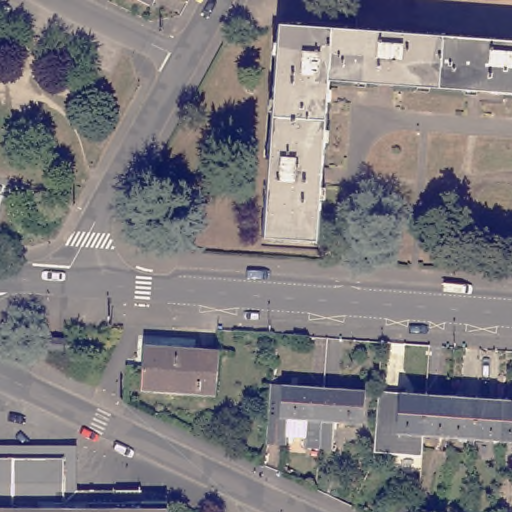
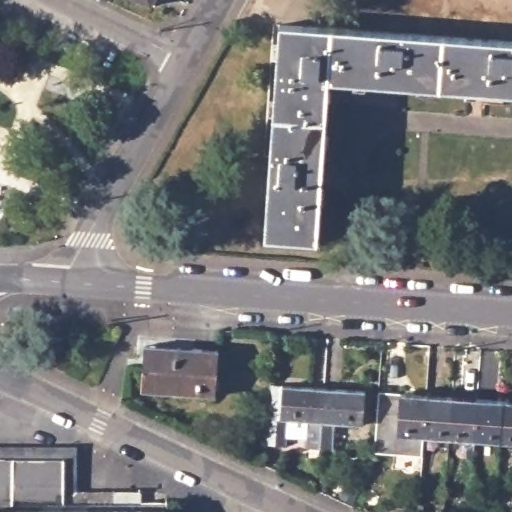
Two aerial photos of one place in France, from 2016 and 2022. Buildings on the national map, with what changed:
unchanged [(136,0),(159,0),(155,9),(136,0)]
unchanged [(361,0),(512,0),(512,38),(358,26),(361,0)]
unchanged [(512,38),(512,90),(332,77),(320,238),(269,235),(285,22),(358,26),(512,38)]
unchanged [(35,350),(20,350),(20,335),(35,335),(35,350)]
unchanged [(139,390),(142,345),(218,349),(215,395),(139,390)]
unchanged [(285,447),(267,446),(272,396),(285,396),(285,390),(327,392),(323,453),(310,452),(310,445),(285,444),(285,447)]
unchanged [(378,433),(381,391),(512,400),(512,442),(398,435),(378,433)]
unchanged [(370,395),(365,429),(339,428),(335,454),(323,453),(327,392),(370,395)]
unchanged [(67,459),(0,458),(0,445),(81,445),(81,489),(145,490),(145,508),(67,508),(67,459)]
unchanged [(170,509),(170,512),(0,512),(0,458),(67,459),(67,508),(145,508),(170,509)]

